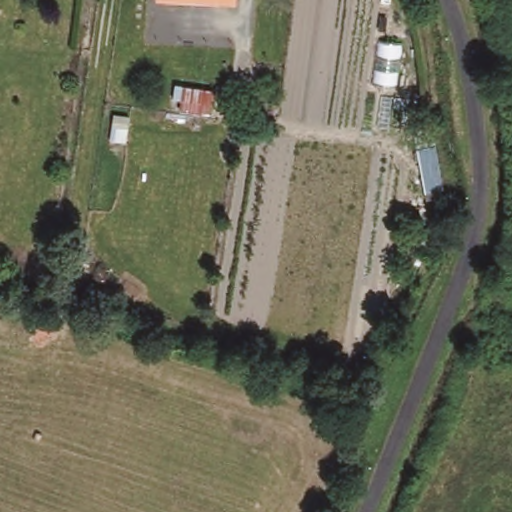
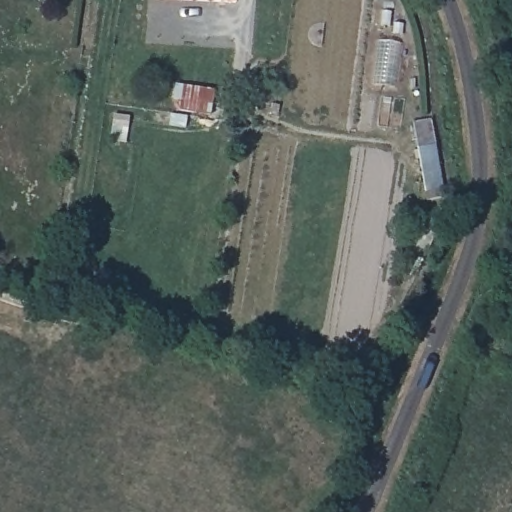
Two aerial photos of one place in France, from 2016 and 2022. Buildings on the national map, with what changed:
unchanged [(235,5),(161,0),(235,0),(235,5)]
unchanged [(225,109),(223,124),(183,118),(185,102),(225,109)]

